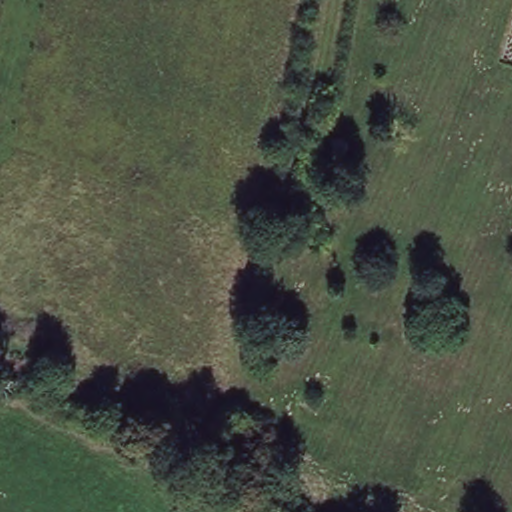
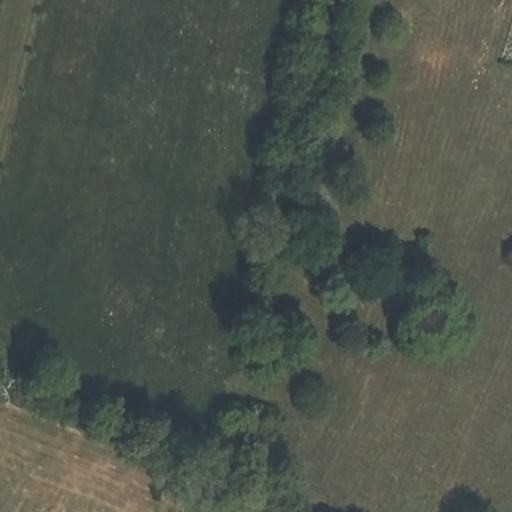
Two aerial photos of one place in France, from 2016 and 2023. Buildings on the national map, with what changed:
[]

